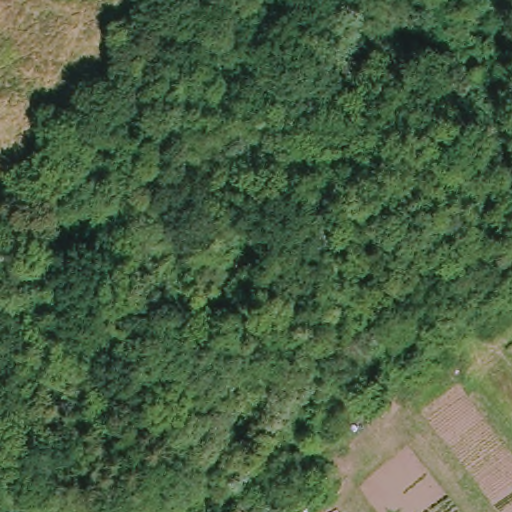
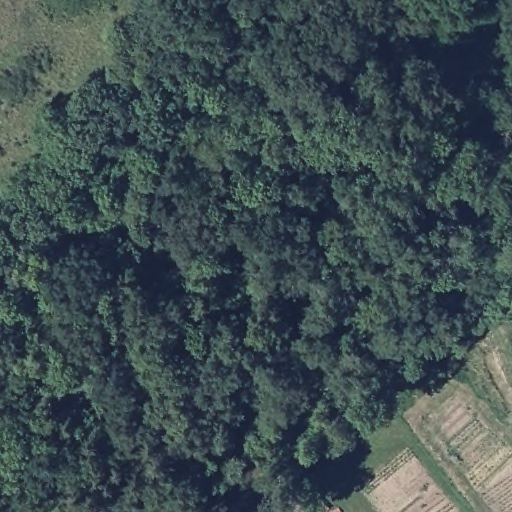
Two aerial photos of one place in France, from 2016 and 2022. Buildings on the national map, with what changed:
unchanged [(233,248),(246,251),(243,270),(228,266),(233,248)]
unchanged [(241,502),(254,512),(233,512),(241,502)]

